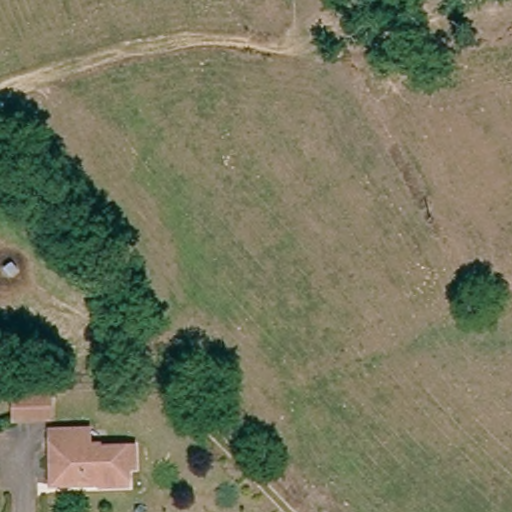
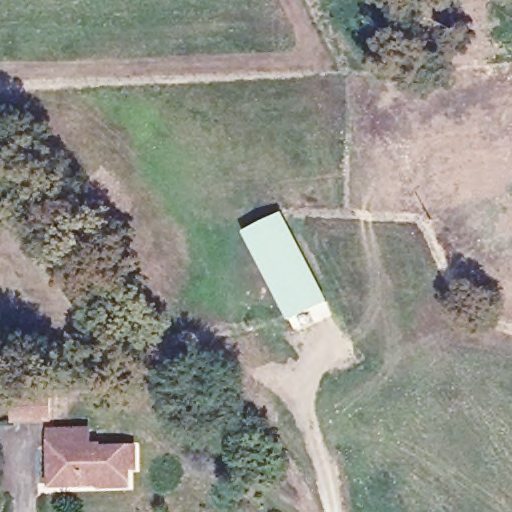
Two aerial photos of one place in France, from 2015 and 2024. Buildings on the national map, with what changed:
new [(327,301),(288,321),(241,232),(281,211),(327,301)]
unchanged [(14,393),(49,391),(51,419),(16,420),(14,393)]
unchanged [(53,465),(51,431),(90,430),(90,445),(99,445),(100,450),(135,448),(136,471),(130,471),(131,488),(106,490),(98,481),(86,482),(80,487),(64,488),(54,488),(53,465)]

